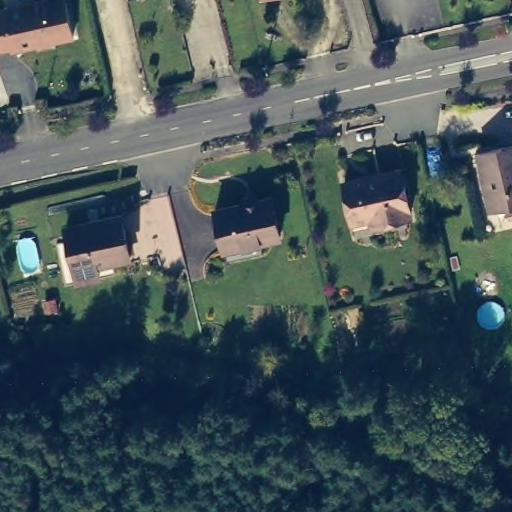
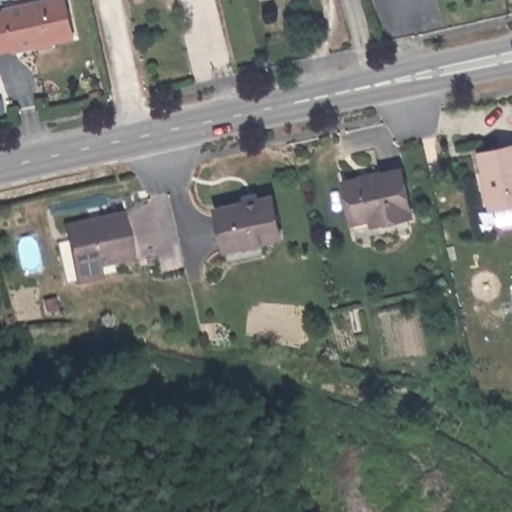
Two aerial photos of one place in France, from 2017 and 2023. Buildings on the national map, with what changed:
unchanged [(8,17),(8,16),(68,2),(78,41),(16,55),(16,54),(0,58),(0,19),(8,17)]
unchanged [(512,205),(498,209),(483,151),(512,145),(512,205)]
unchanged [(402,164),(414,209),(406,211),(409,221),(358,233),(346,176),(402,164)]
unchanged [(281,230),(264,235),(264,246),(227,254),(216,206),(273,193),(281,230)]
unchanged [(130,252),(114,256),(116,270),(64,281),(56,238),(67,235),(65,221),(122,210),(130,252)]

